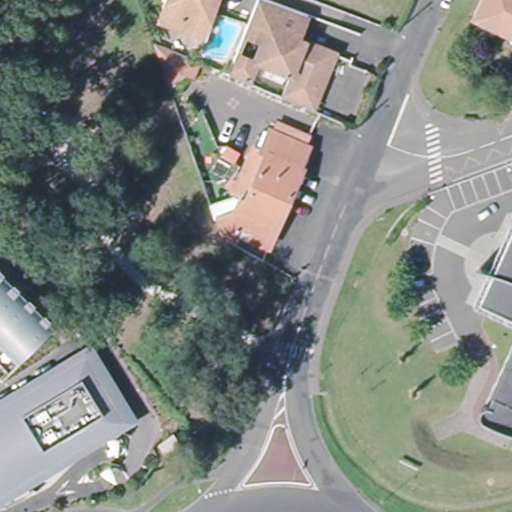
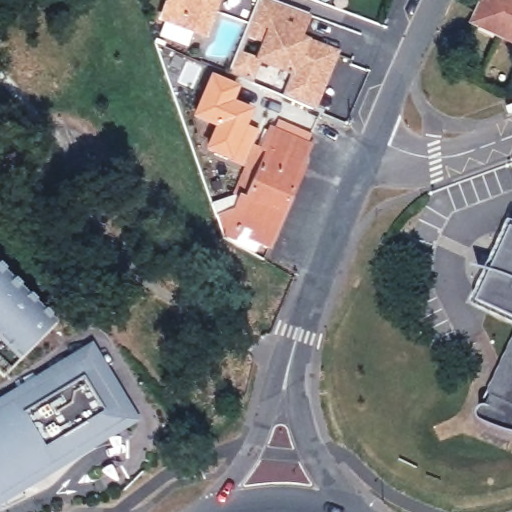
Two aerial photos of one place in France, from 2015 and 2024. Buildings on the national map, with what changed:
unchanged [(168,2),(169,0),(216,0),(215,6),(216,8),(207,33),(180,23),(160,16),(165,1),(168,2)]
unchanged [(338,50),(317,109),(285,96),(295,71),(262,59),(270,40),(247,31),(260,0),(279,0),(311,11),(302,38),(338,50)]
unchanged [(480,11),(485,0),(512,0),(512,25),(480,11)]
unchanged [(270,40),(262,59),(253,83),(232,74),(247,31),(270,40)]
unchanged [(202,64),(194,86),(165,75),(155,45),(202,64)]
new [(241,89),(236,103),(255,112),(250,126),(258,130),(252,145),(260,148),(268,126),(275,128),(271,137),(274,140),(252,193),(247,192),(242,202),(217,207),(217,201),(232,195),(242,168),(232,162),(205,152),(214,129),(192,119),(211,75),(241,89)]
unchanged [(225,227),(217,207),(242,202),(247,192),(252,193),(274,140),(271,137),(280,120),(316,136),(307,156),(311,159),(276,239),(256,231),(258,224),(247,220),(240,236),(225,227)]
unchanged [(478,304),(510,230),(512,231),(512,318),(478,304)]
unchanged [(15,367),(4,378),(0,375),(0,263),(59,323),(15,367)]
unchanged [(507,431),(493,427),(487,425),(478,421),(477,419),(476,416),(476,413),(477,411),(478,409),(480,407),(482,406),(486,406),(489,407),(512,353),(512,432),(507,431)]
unchanged [(0,498),(0,409),(12,402),(14,406),(55,381),(52,377),(62,371),(65,375),(90,360),(127,421),(0,498)]

